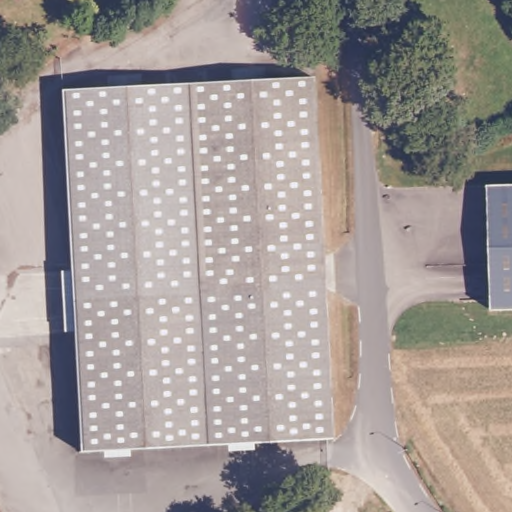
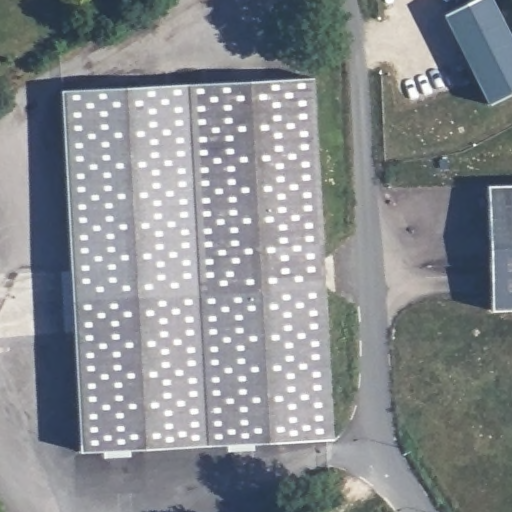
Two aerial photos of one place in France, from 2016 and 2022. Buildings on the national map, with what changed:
new [(491,0),(512,41),(512,91),(487,104),(443,16),(474,0),(491,0)]
unchanged [(55,88),(305,66),(332,426),(80,446),(55,88)]
unchanged [(490,184),(512,182),(512,307),(495,308),(490,184)]

